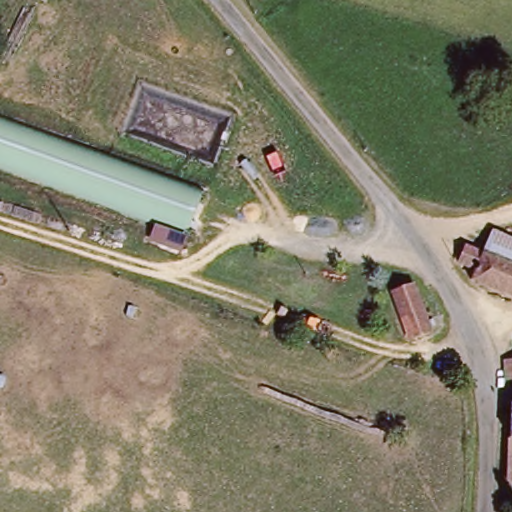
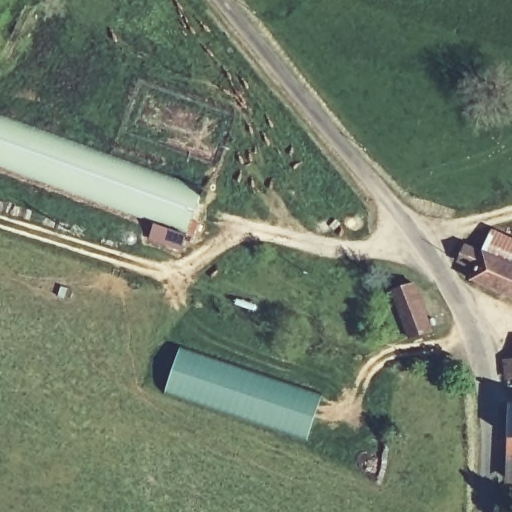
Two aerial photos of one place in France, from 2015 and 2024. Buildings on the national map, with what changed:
unchanged [(185,233),(0,161),(0,111),(202,189),(185,233)]
unchanged [(157,225),(185,235),(180,248),(152,236),(157,225)]
unchanged [(482,249),(491,229),(512,239),(512,261),(482,249)]
unchanged [(482,249),(512,261),(512,299),(470,281),(475,268),(458,261),(465,242),(482,249)]
unchanged [(391,292),(412,285),(425,320),(430,332),(410,340),(391,292)]
new [(310,438),(166,392),(180,346),(323,391),(310,438)]
unchanged [(511,410),(512,410),(512,431),(511,410)]

